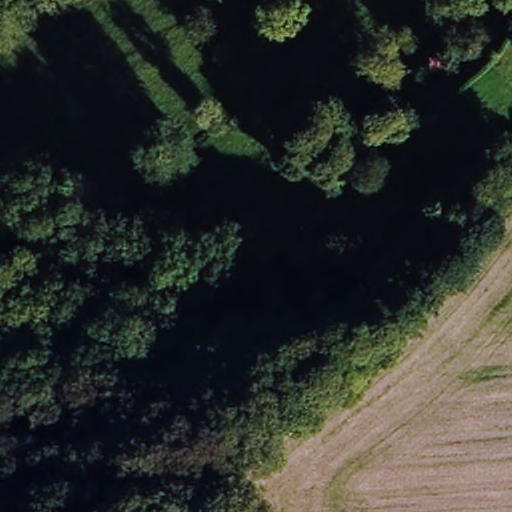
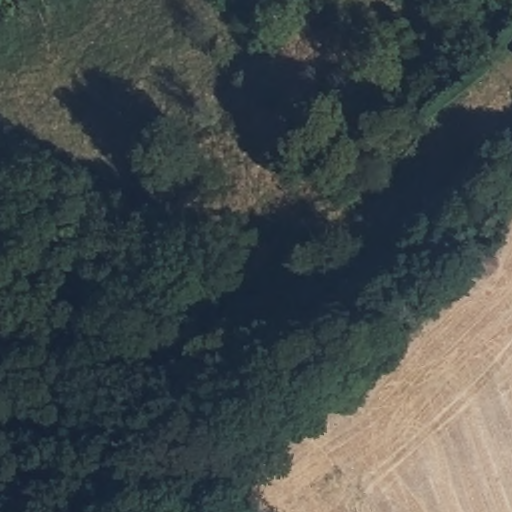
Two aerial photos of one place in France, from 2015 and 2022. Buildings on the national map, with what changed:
unchanged [(377,295),(361,279),(405,235),(423,253),(377,295)]

